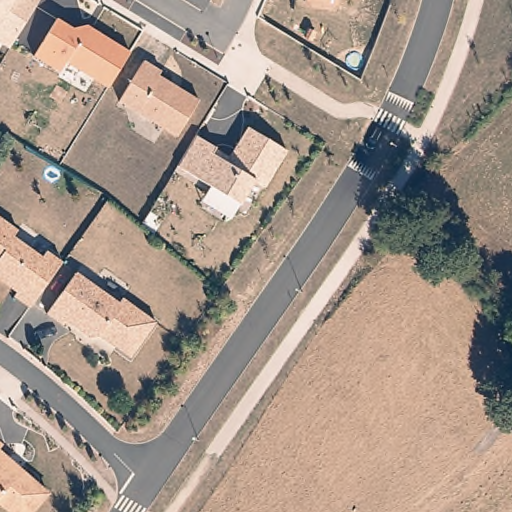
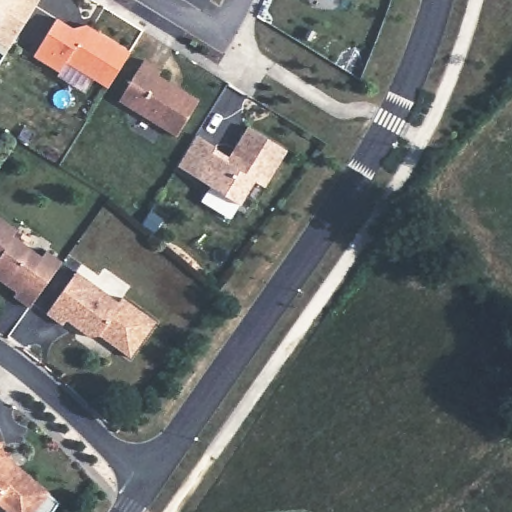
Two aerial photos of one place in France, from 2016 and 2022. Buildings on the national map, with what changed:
unchanged [(9,50),(0,45),(0,0),(38,0),(9,50)]
unchanged [(56,18),(71,28),(86,24),(129,49),(107,87),(67,62),(60,73),(32,56),(56,18)]
unchanged [(119,102),(145,59),(162,68),(158,76),(198,99),(176,137),(119,102)]
unchanged [(285,148),(265,185),(255,179),(239,205),(178,165),(196,134),(230,156),(247,127),(285,148)]
unchanged [(14,300),(17,295),(0,284),(0,221),(17,232),(12,238),(42,259),(46,253),(62,264),(29,310),(14,300)]
unchanged [(77,275),(119,306),(122,300),(156,326),(131,361),(100,339),(90,339),(67,322),(62,328),(47,316),(77,275)]
unchanged [(0,449),(0,448),(1,448),(0,449)]
unchanged [(33,512),(5,512),(0,507),(0,455),(47,496),(33,512)]

